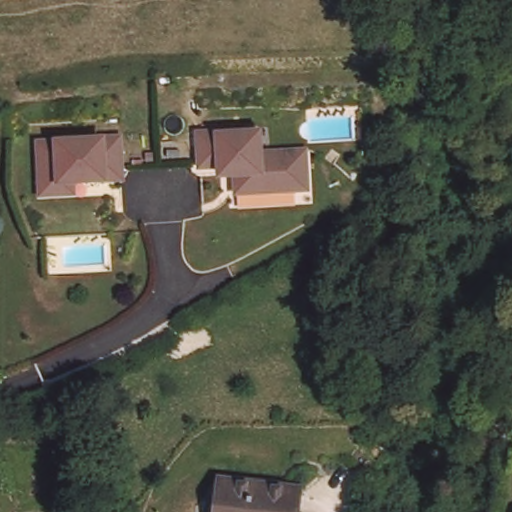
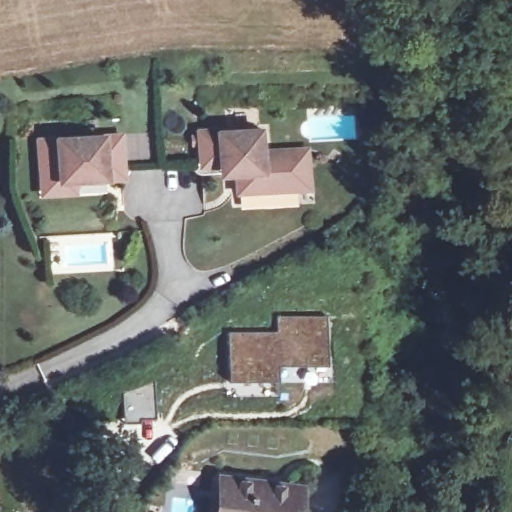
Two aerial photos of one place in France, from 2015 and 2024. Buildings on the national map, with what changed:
unchanged [(234,195),(233,180),(216,182),(217,168),(199,171),(195,133),(216,131),(265,130),(266,151),(312,148),(313,193),(234,195)]
unchanged [(39,138),(56,137),(127,133),(131,179),(80,182),(80,197),(40,199),(39,138)]
new [(276,331),(277,315),(328,314),(330,367),(280,369),(280,381),(228,382),(227,331),(276,331)]
new [(153,383),(155,418),(123,421),(121,389),(153,383)]
unchanged [(296,512),(218,512),(222,477),(299,486),(296,512)]

